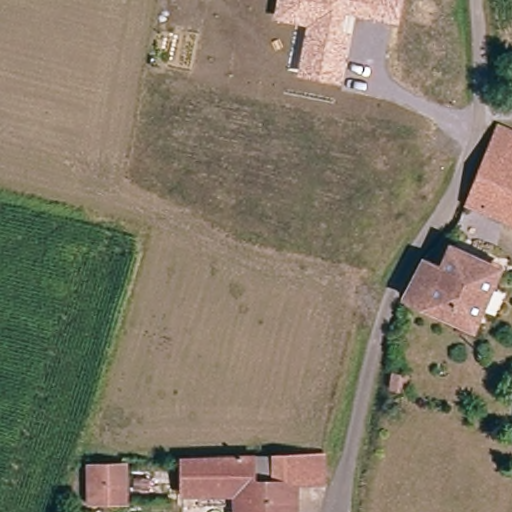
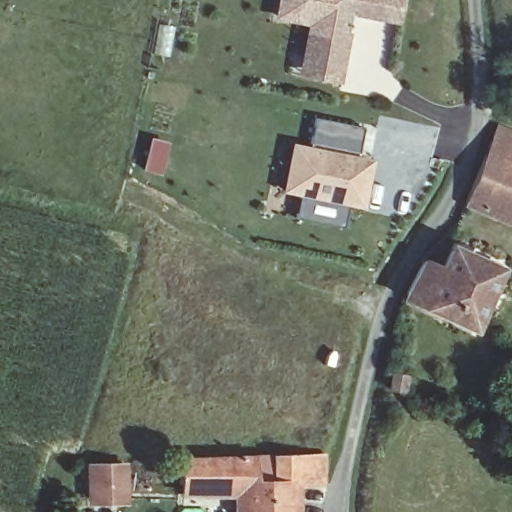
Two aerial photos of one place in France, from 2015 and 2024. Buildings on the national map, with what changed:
unchanged [(347,16),(344,30),(351,32),(342,85),(297,77),(306,27),(274,21),(278,0),(403,0),(399,26),(347,16)]
new [(312,149),(313,142),(316,117),(365,123),(361,149),(360,155),(374,157),(368,201),(291,191),(296,147),(312,149)]
unchanged [(512,233),(466,215),(498,131),(512,137),(512,233)]
unchanged [(440,263),(445,251),(484,265),(464,325),(408,304),(426,257),(440,263)]
unchanged [(484,265),(499,271),(480,331),(464,325),(484,265)]
unchanged [(325,482),(297,483),(297,512),(240,512),(241,494),(220,494),(221,459),(326,455),(325,482)]
unchanged [(212,494),(211,499),(184,500),(186,461),(221,459),(220,494),(212,494)]
unchanged [(124,469),(127,500),(93,501),(89,471),(124,469)]

